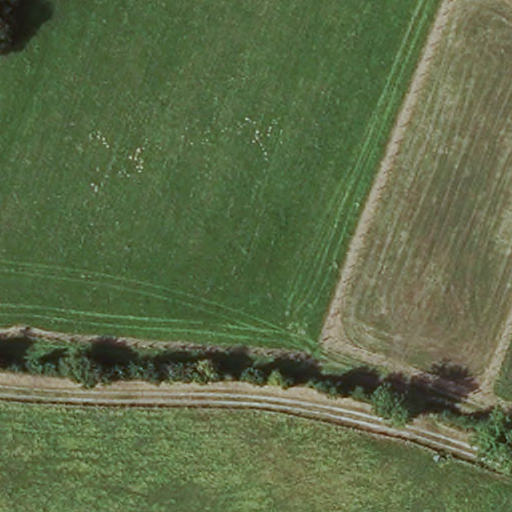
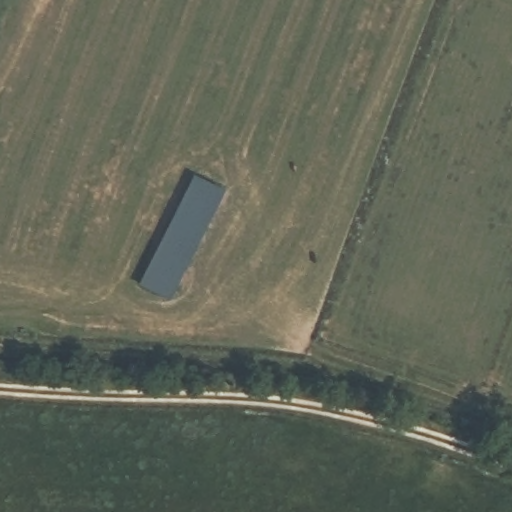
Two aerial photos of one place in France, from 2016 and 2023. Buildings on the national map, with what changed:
new [(193,175),(223,189),(169,299),(138,285),(193,175)]

